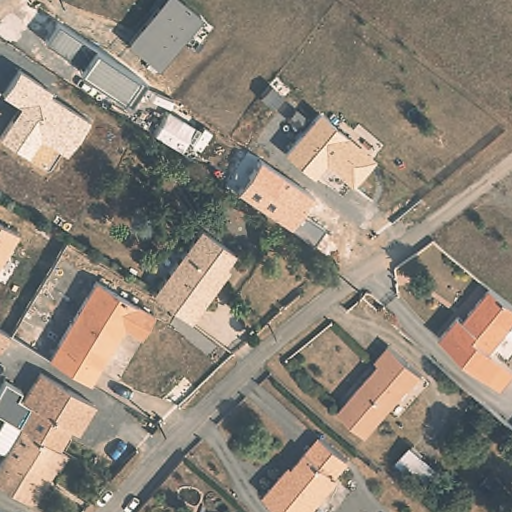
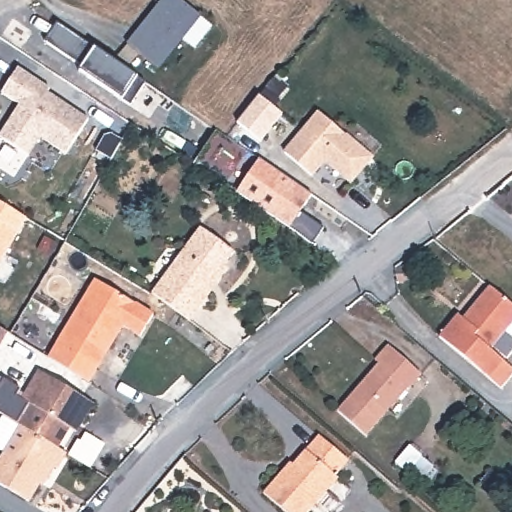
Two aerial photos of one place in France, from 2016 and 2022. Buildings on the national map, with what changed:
unchanged [(158,70),(126,45),(162,0),(180,0),(201,17),(158,70)]
unchanged [(130,105),(122,99),(80,72),(83,67),(46,41),(57,25),(95,50),(136,77),(145,82),(130,105)]
unchanged [(40,138),(27,157),(0,140),(0,135),(19,104),(1,93),(17,68),(52,90),(50,95),(89,120),(67,156),(40,138)]
unchanged [(260,142),(237,123),(259,96),(282,115),(260,142)]
unchanged [(352,186),(325,164),(313,177),(284,153),(317,112),(374,158),(352,186)]
unchanged [(301,214),(324,228),(313,244),(236,193),(259,159),(313,195),(301,214)]
unchanged [(0,223),(18,234),(0,265),(0,223)]
unchanged [(189,322),(152,295),(202,228),(235,253),(225,266),(229,269),(218,284),(209,296),(189,322)]
unchanged [(48,360),(57,344),(95,281),(153,316),(140,337),(123,327),(97,369),(88,384),(48,360)]
unchanged [(512,305),(512,335),(501,326),(485,345),(511,367),(496,384),(434,332),(453,310),(457,314),(463,308),(485,282),(512,305)]
unchanged [(0,329),(8,334),(0,349),(0,329)]
unchanged [(388,346),(421,375),(408,390),(407,389),(366,436),(337,411),(379,364),(375,361),(388,346)]
unchanged [(23,397),(40,368),(94,398),(77,427),(71,424),(59,444),(22,423),(19,420),(30,401),(23,397)]
unchanged [(20,391),(16,399),(27,406),(19,420),(8,416),(0,411),(0,389),(4,381),(20,391)]
unchanged [(58,466),(51,462),(30,497),(0,481),(0,463),(6,451),(0,448),(0,429),(8,415),(8,416),(19,420),(22,423),(59,444),(68,449),(67,450),(58,466)]
unchanged [(307,452),(320,437),(347,460),(334,475),(338,478),(309,512),(285,512),(264,494),(285,469),(288,471),(305,451),(307,452)]
unchanged [(420,482),(397,462),(410,447),(433,466),(420,482)]
unchanged [(491,496),(480,487),(491,474),(502,484),(491,496)]

